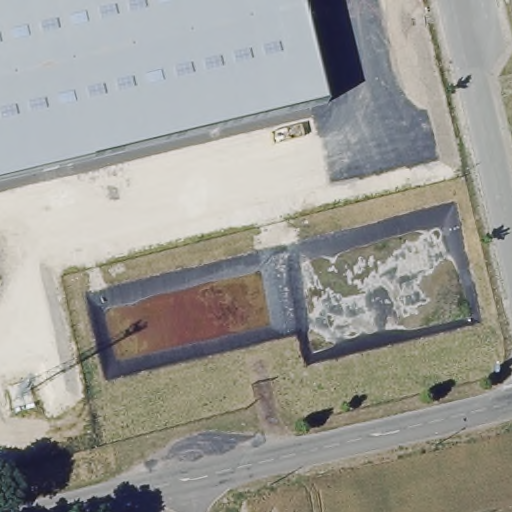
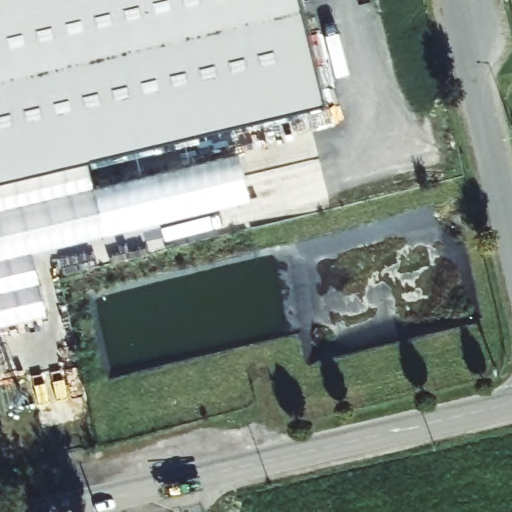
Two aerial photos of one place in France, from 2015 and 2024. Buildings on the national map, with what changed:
unchanged [(301,0),(326,100),(0,179),(0,0),(301,0)]
new [(89,158),(111,240),(39,260),(51,321),(0,333),(0,179),(89,158)]
new [(98,193),(243,160),(256,207),(111,240),(98,193)]

